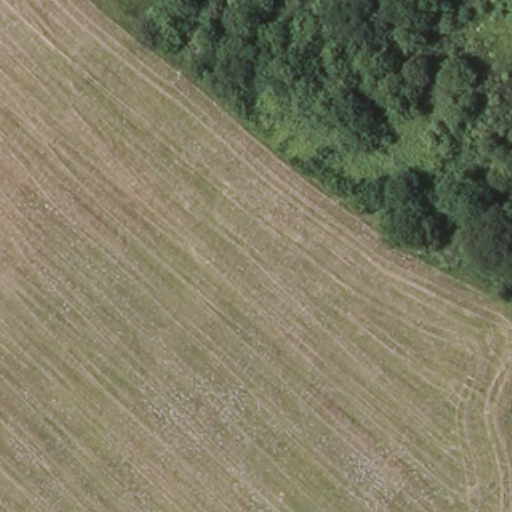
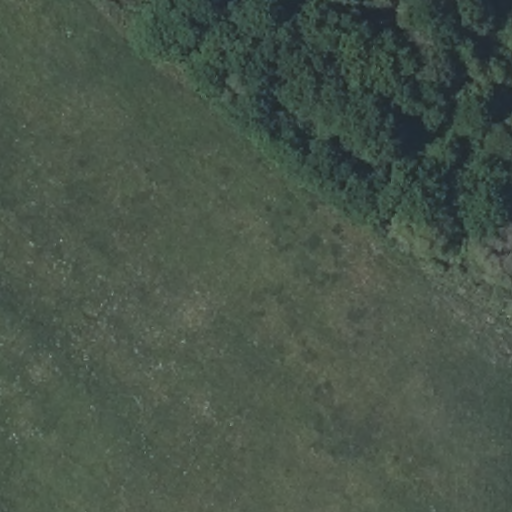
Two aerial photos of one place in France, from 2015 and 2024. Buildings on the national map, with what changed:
[]

